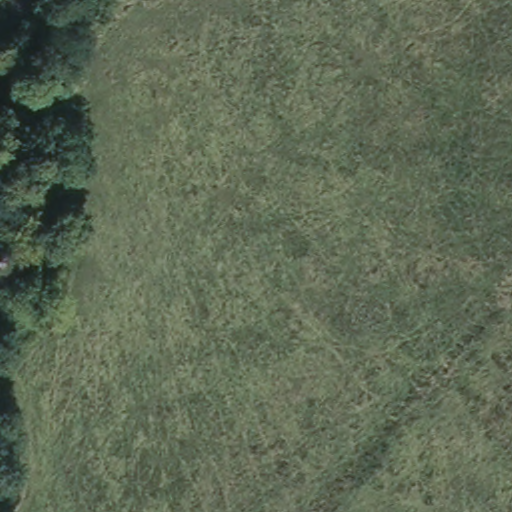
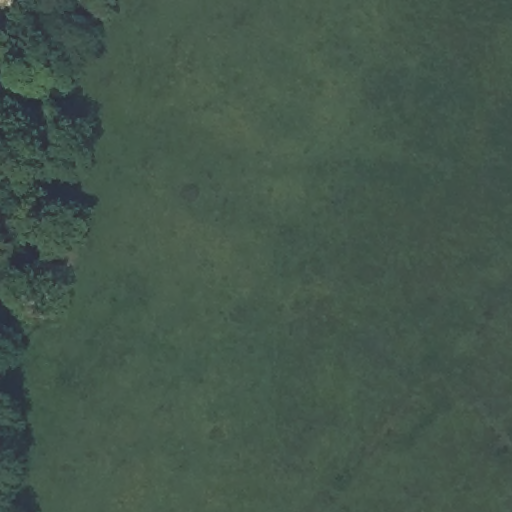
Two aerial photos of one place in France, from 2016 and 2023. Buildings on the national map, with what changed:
[]

